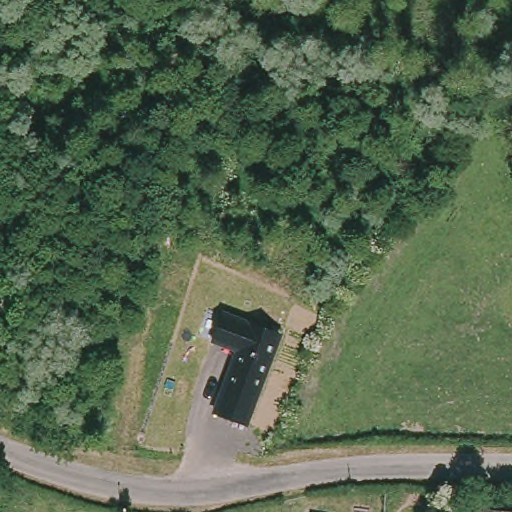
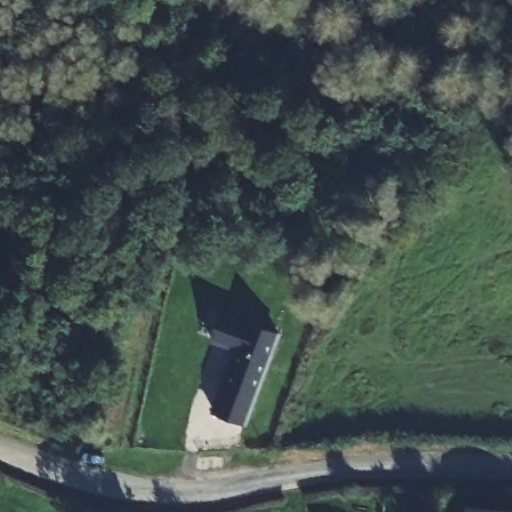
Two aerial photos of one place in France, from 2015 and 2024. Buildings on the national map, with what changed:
unchanged [(281,331),(248,427),(209,413),(233,348),(211,340),(223,310),(281,331)]
unchanged [(468,510),(502,512),(467,512),(468,510)]

